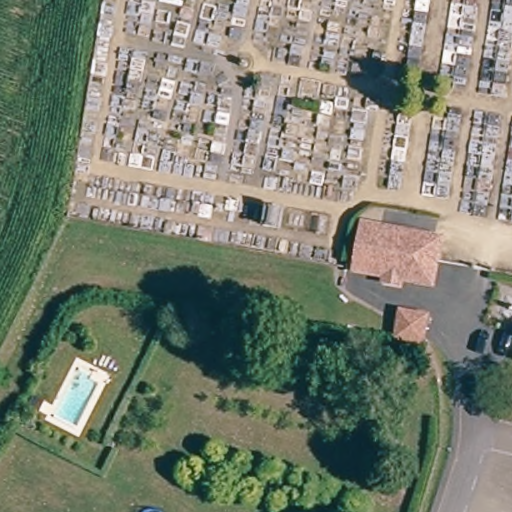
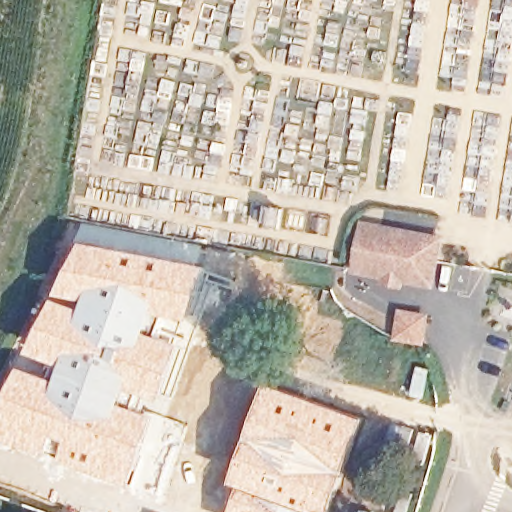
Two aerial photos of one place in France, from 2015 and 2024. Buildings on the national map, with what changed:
unchanged [(380,278),(381,271),(353,266),(362,220),(440,234),(435,259),(431,280),(403,275),(401,282),(380,278)]
new [(210,264),(194,323),(185,344),(183,348),(185,349),(164,400),(129,389),(125,400),(155,413),(130,487),(32,452),(0,438),(0,409),(83,239),(210,264)]
unchanged [(426,317),(421,343),(419,342),(396,338),(397,328),(400,312),(426,317)]
new [(267,380),(366,417),(348,471),(333,512),(315,512),(240,485),(234,483),(247,436),(267,380)]
new [(315,512),(231,512),(240,485),(315,512)]

